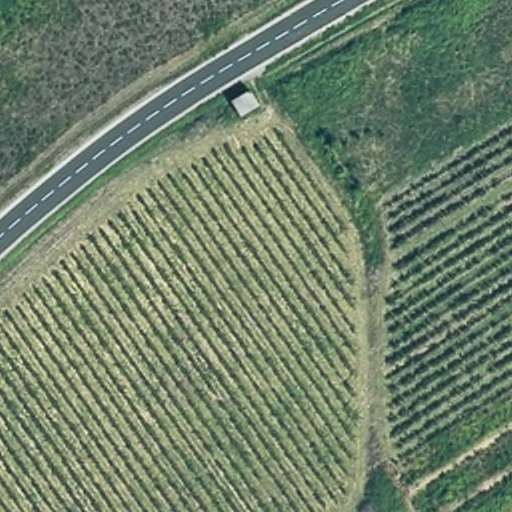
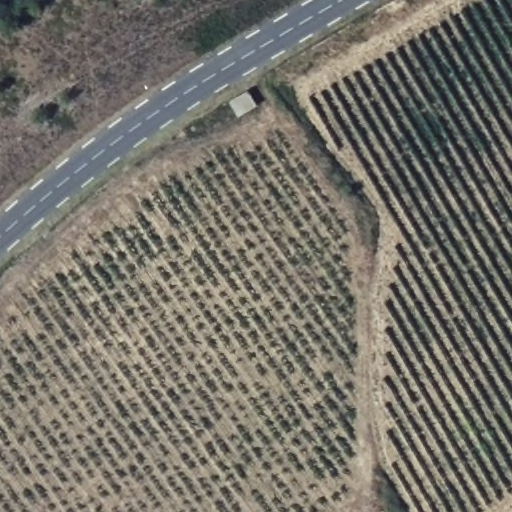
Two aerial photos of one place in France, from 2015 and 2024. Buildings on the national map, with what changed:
unchanged [(249,85),(257,105),(240,114),(225,97),(249,85)]

